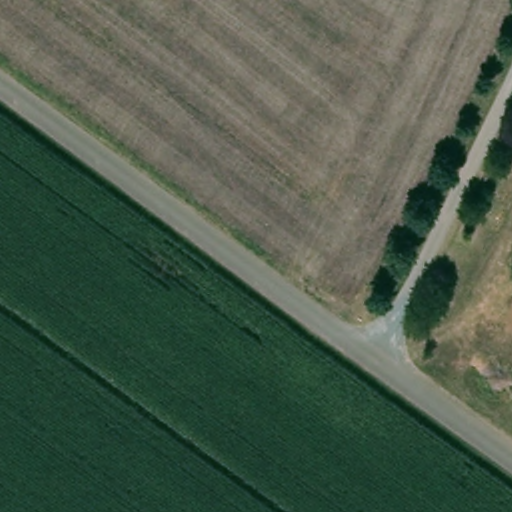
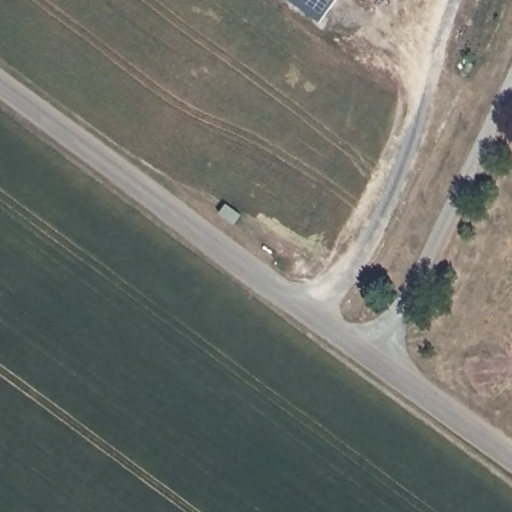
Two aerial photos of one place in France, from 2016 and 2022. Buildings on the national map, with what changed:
new [(289,0),(335,0),(319,22),(289,0)]

